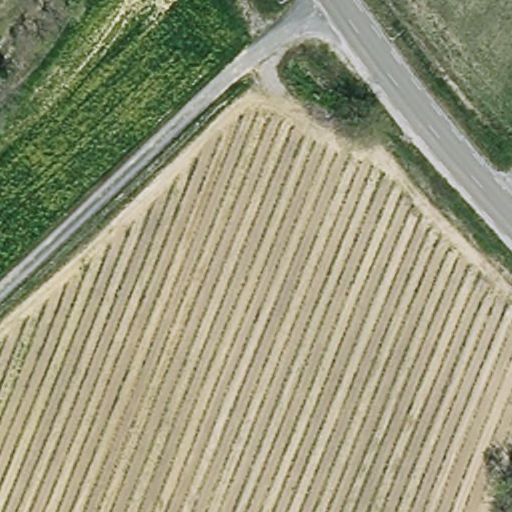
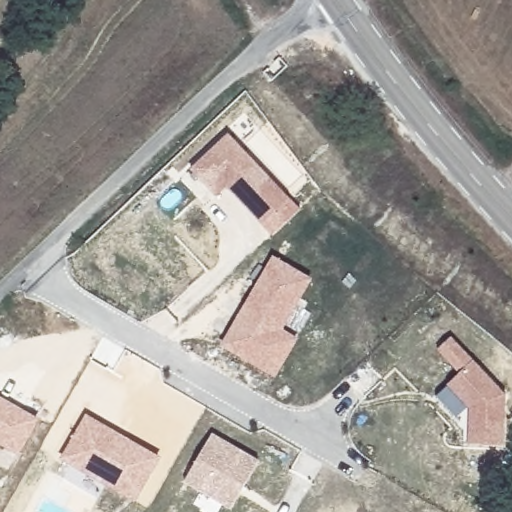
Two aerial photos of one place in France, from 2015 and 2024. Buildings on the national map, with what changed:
new [(291,199),(262,225),(227,187),(217,196),(190,169),(228,134),(291,199)]
new [(277,257),(313,279),(285,329),(300,338),(276,379),(221,346),(277,257)]
new [(474,360),(506,394),(505,446),(469,445),(469,408),(447,385),(459,373),(436,350),(451,336),(474,360)]
new [(40,419),(18,455),(0,445),(0,396),(40,419)]
new [(162,456),(135,502),(60,459),(85,415),(162,456)]
new [(259,460),(231,510),(184,482),(212,432),(259,460)]

